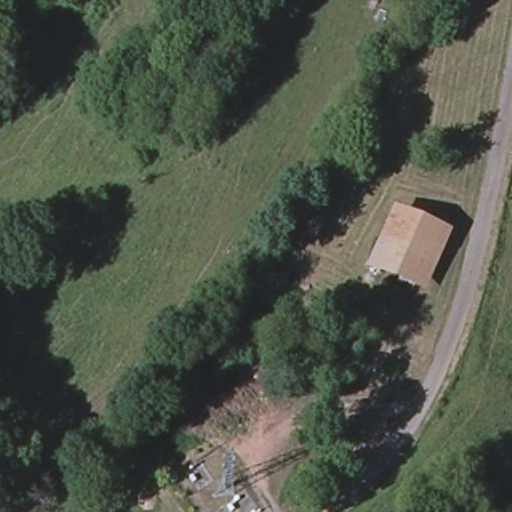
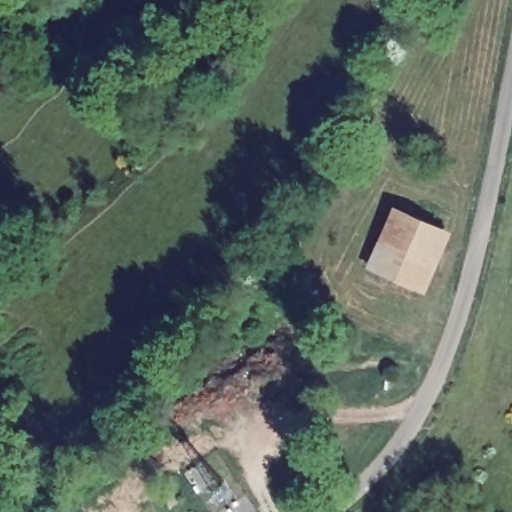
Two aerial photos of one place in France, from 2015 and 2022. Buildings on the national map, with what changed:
unchanged [(455,231),(430,292),(370,269),(397,206),(455,231)]

